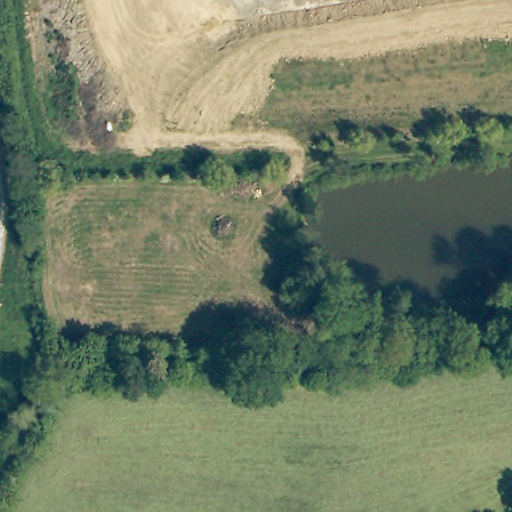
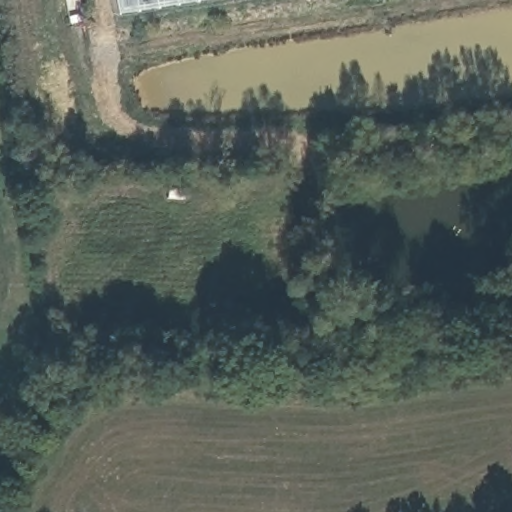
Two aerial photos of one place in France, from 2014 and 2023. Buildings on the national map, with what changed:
new [(112,13),(110,0),(192,0),(112,13)]

